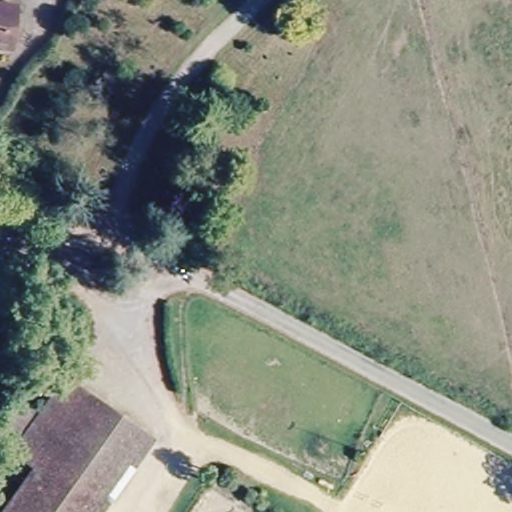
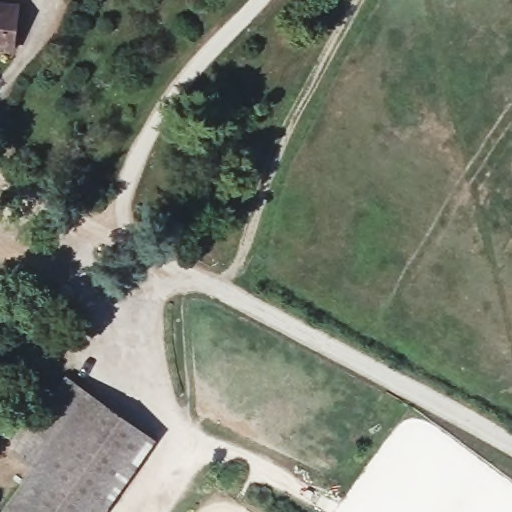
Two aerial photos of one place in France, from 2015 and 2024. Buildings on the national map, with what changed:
unchanged [(14,26),(11,47),(4,46),(0,46),(0,2),(16,4),(14,26)]
unchanged [(4,512),(39,468),(14,449),(70,376),(157,443),(104,512),(4,512)]

